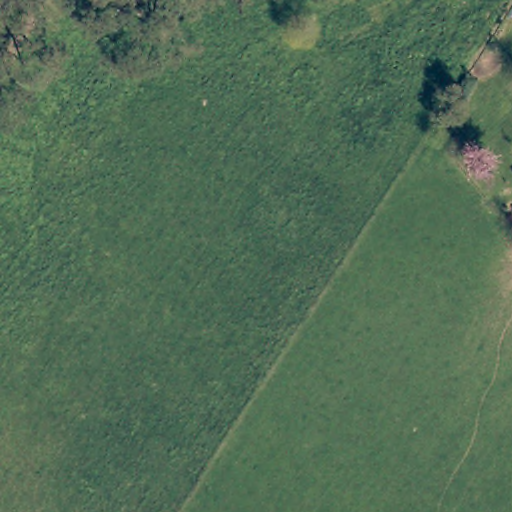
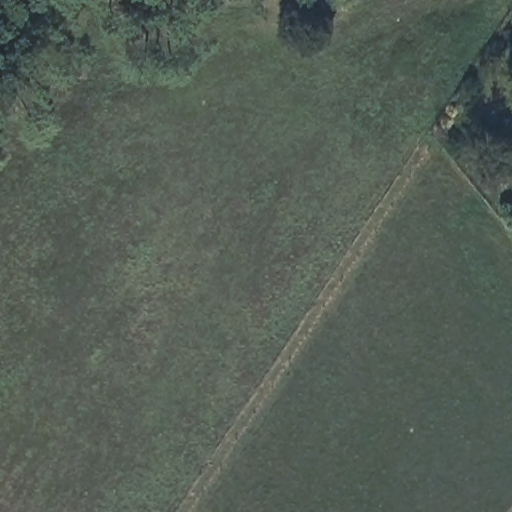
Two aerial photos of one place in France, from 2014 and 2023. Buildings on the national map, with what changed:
[]

